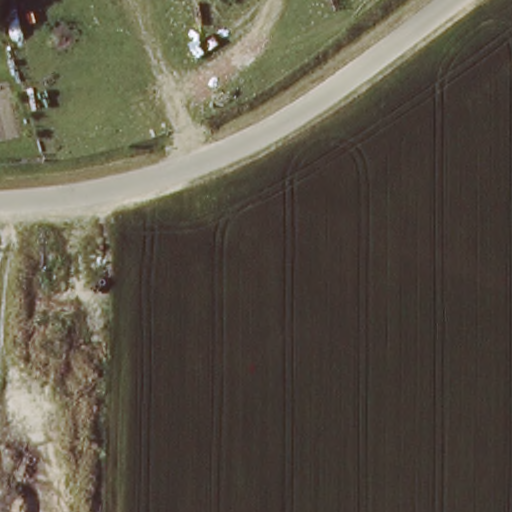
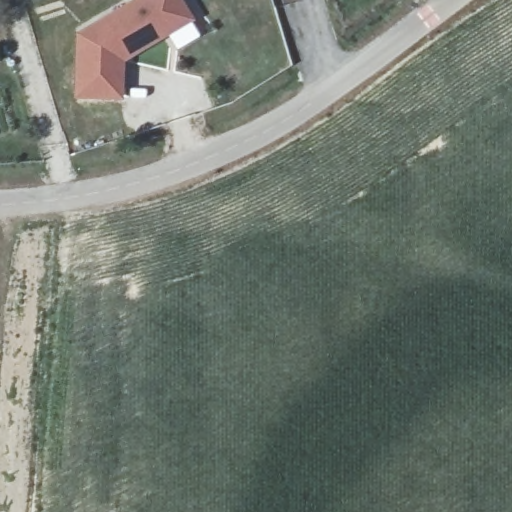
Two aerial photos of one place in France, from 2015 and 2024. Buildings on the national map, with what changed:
new [(76,35),(135,0),(184,0),(197,21),(127,62),(126,100),(77,99),(76,35)]

